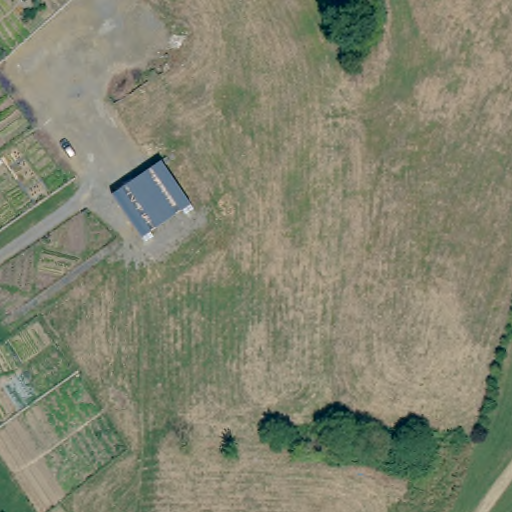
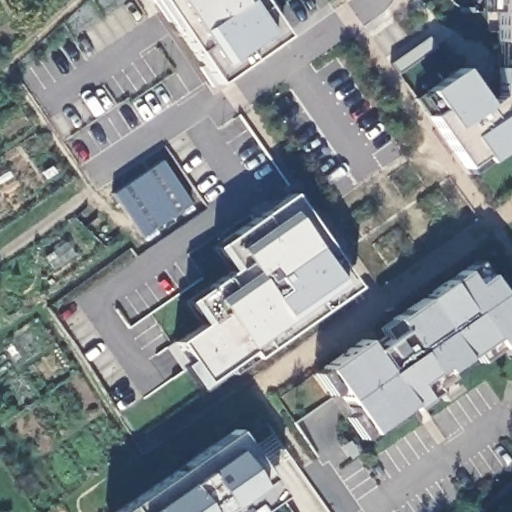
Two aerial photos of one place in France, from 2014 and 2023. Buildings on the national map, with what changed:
new [(158,0),(264,0),(267,7),(263,10),(280,35),(213,82),(158,0)]
new [(427,117),(437,110),(424,93),(459,68),(483,104),(495,95),(496,67),(499,66),(498,42),(495,42),(495,11),(486,11),(486,0),(512,0),(512,142),(483,162),(478,156),(462,168),(427,117)]
unchanged [(162,161),(192,204),(142,237),(111,193),(162,161)]
new [(178,365),(185,359),(173,342),(199,324),(184,303),(229,272),(212,246),(288,193),(353,286),(250,357),(230,371),(225,365),(194,387),(178,365)]
new [(344,417),(352,412),(337,390),(329,394),(316,374),(320,371),(316,366),(366,333),(372,342),(394,326),(390,319),(477,261),(486,274),(512,313),(512,349),(505,354),(499,345),(478,360),(475,356),(432,386),(437,395),(397,422),(395,418),(369,436),(367,433),(359,438),(344,417)]
new [(278,493),(254,511),(250,506),(242,512),(113,512),(233,430),(278,493)]

